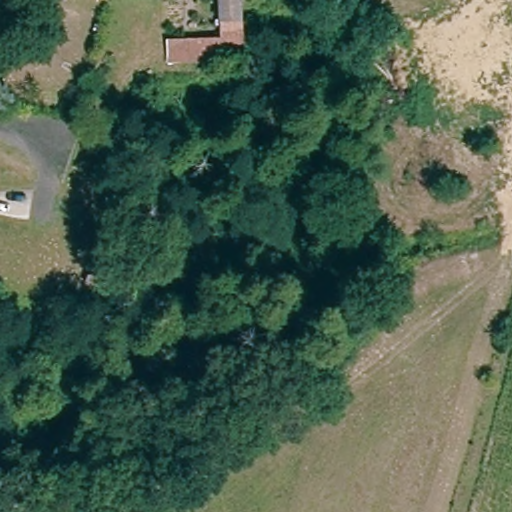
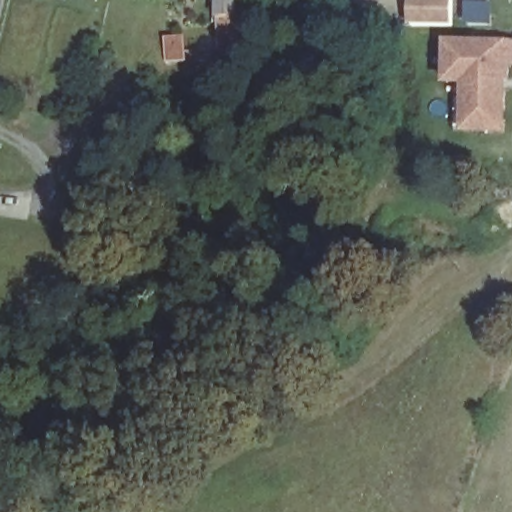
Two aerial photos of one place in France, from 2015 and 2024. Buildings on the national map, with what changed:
unchanged [(167,42),(221,41),(219,0),(243,0),(240,62),(166,66),(167,42)]
new [(410,27),(410,0),(453,0),(454,27),(410,27)]
new [(462,134),(463,87),(445,86),(445,41),(512,41),(512,67),(511,67),(511,83),(506,84),(506,135),(462,134)]

